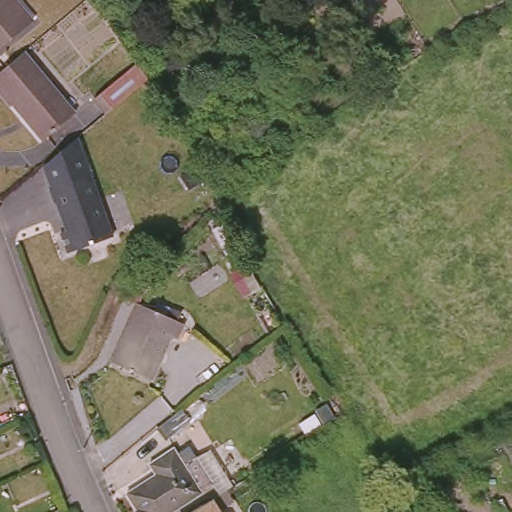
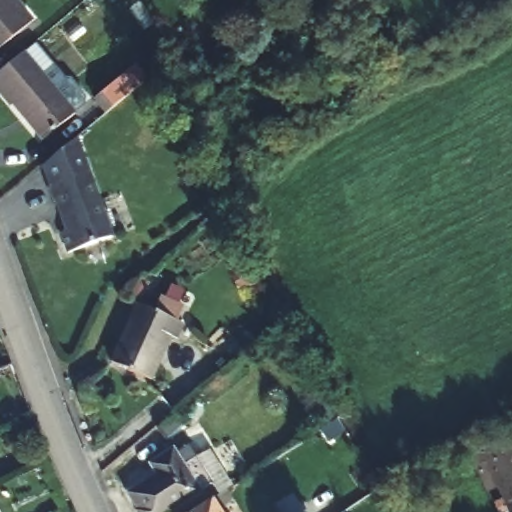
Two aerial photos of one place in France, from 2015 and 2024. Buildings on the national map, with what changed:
unchanged [(27,29),(0,51),(0,0),(14,0),(8,6),(27,29)]
unchanged [(70,112),(40,137),(0,88),(0,69),(20,52),(70,112)]
unchanged [(108,110),(94,92),(135,60),(147,77),(108,110)]
unchanged [(92,179),(54,192),(46,169),(79,142),(92,179)]
unchanged [(68,254),(60,232),(67,230),(54,192),(92,179),(113,239),(68,254)]
unchanged [(238,281),(222,254),(237,245),(253,272),(238,281)]
unchanged [(165,322),(168,315),(177,318),(174,327),(178,330),(173,342),(167,341),(149,383),(111,368),(137,310),(165,322)]
unchanged [(187,420),(163,440),(152,427),(163,417),(175,407),(187,420)]
unchanged [(192,487),(192,488),(157,512),(133,512),(120,490),(148,471),(142,462),(164,447),(167,452),(178,444),(187,457),(197,450),(200,448),(202,451),(225,485),(218,488),(212,492),(204,480),(192,487)]
unchanged [(208,512),(182,512),(200,501),(208,512)]

